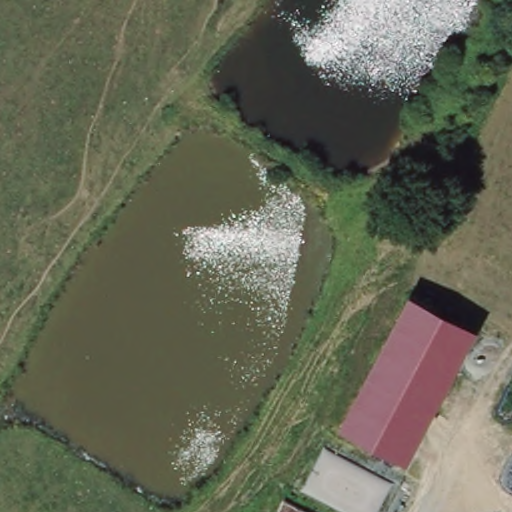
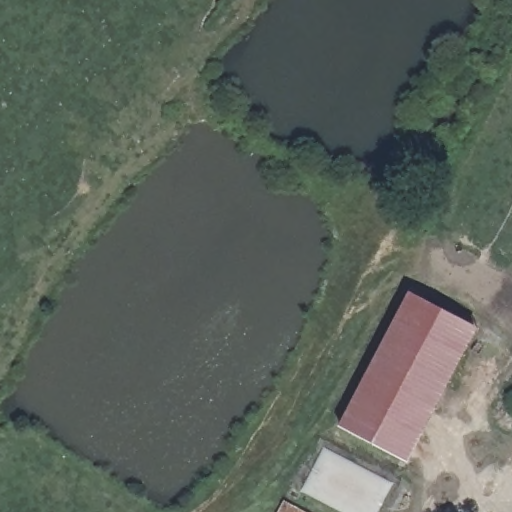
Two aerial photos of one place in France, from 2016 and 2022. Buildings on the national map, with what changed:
unchanged [(484,326),(412,465),(341,427),(415,289),(484,326)]

